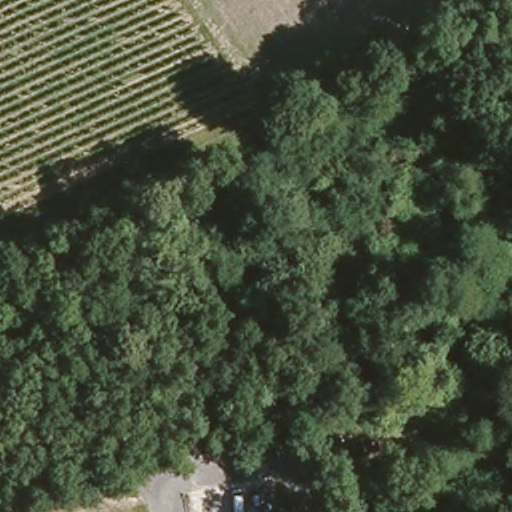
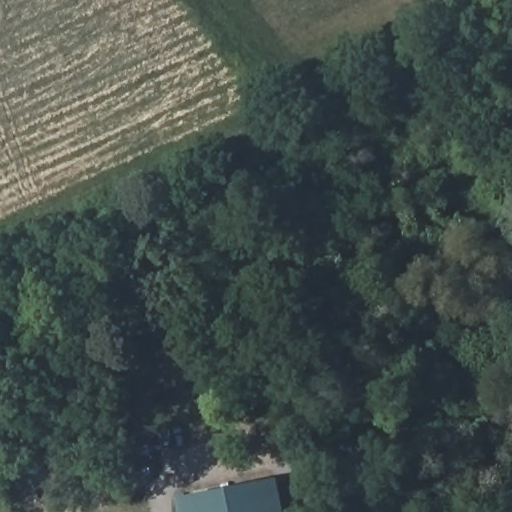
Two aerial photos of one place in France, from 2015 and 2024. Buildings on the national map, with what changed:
new [(277,477),(284,512),(179,512),(176,497),(277,477)]

